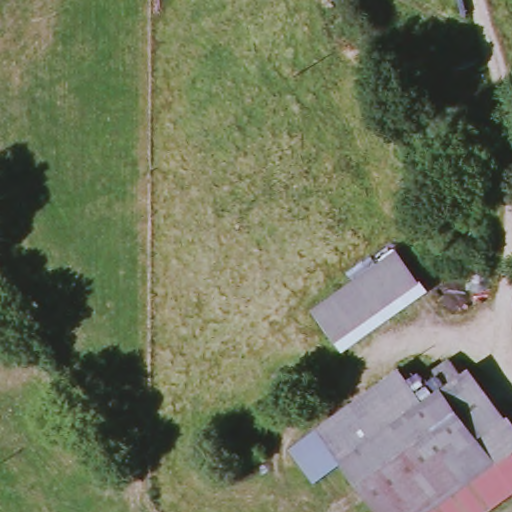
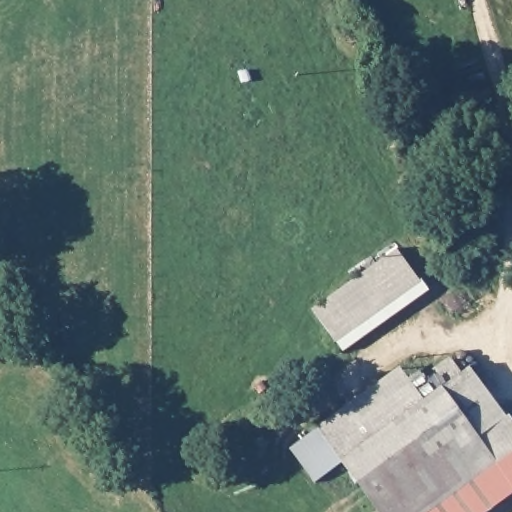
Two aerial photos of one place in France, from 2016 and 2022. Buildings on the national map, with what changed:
unchanged [(398,251),(420,282),(425,280),(431,291),(345,356),(313,311),(398,251)]
unchanged [(512,494),(487,512),(368,512),(367,509),(377,504),(347,459),(315,484),(290,446),(320,428),(400,369),(408,384),(424,375),(435,393),(468,369),(512,422),(512,494)]

